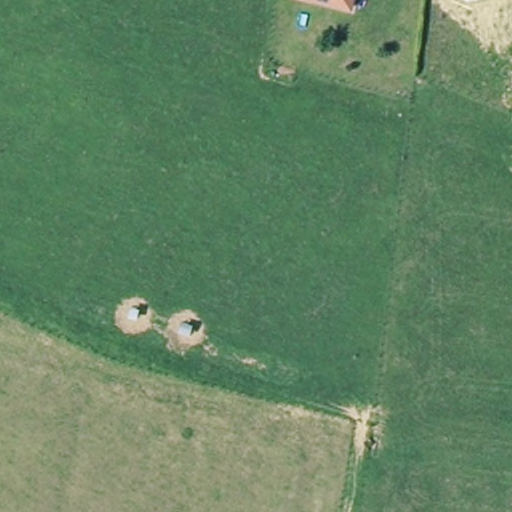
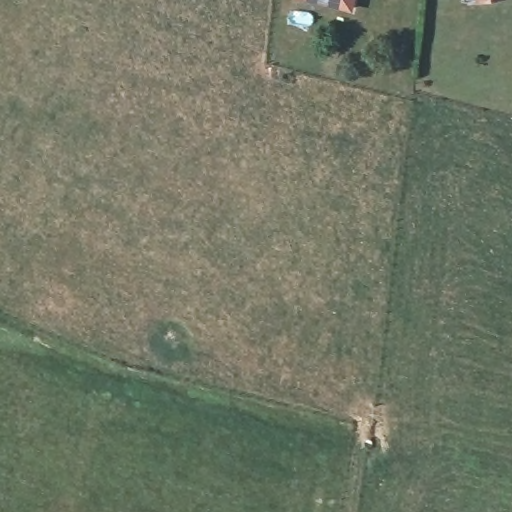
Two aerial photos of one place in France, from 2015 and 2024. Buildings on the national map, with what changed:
unchanged [(356,0),(354,5),(333,0),(356,0)]

